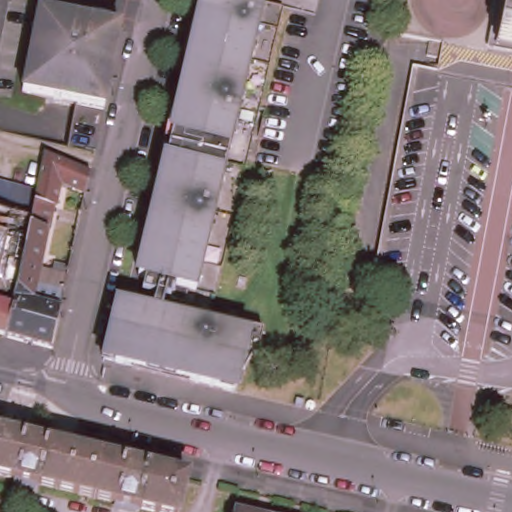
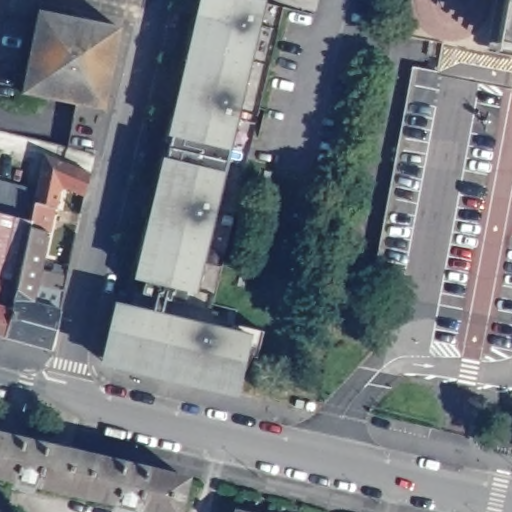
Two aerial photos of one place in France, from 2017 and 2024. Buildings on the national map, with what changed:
unchanged [(191,304),(206,307),(204,316),(211,318),(241,325),(234,352),(230,351),(211,387),(188,381),(109,363),(81,356),(95,298),(109,302),(116,272),(133,199),(136,186),(158,99),(161,85),(178,12),(181,0),(254,0),(263,2),(191,304)]
unchanged [(497,9),(499,0),(507,0),(502,35),(512,36),(512,55),(489,51),(497,9)]
unchanged [(507,0),(512,0),(512,36),(502,35),(507,0)]
unchanged [(116,21),(98,105),(15,89),(33,6),(116,21)]
unchanged [(35,192),(29,217),(44,156),(61,160),(89,167),(84,189),(56,181),(38,262),(66,270),(62,290),(58,305),(60,306),(54,330),(53,336),(50,345),(4,331),(3,333),(0,332),(0,183),(35,192)]
unchanged [(40,480),(38,487),(14,481),(16,474),(0,470),(0,429),(189,473),(180,512),(177,512),(140,503),(138,510),(114,505),(116,498),(40,480)]
unchanged [(232,506),(258,512),(231,512),(232,506)]

